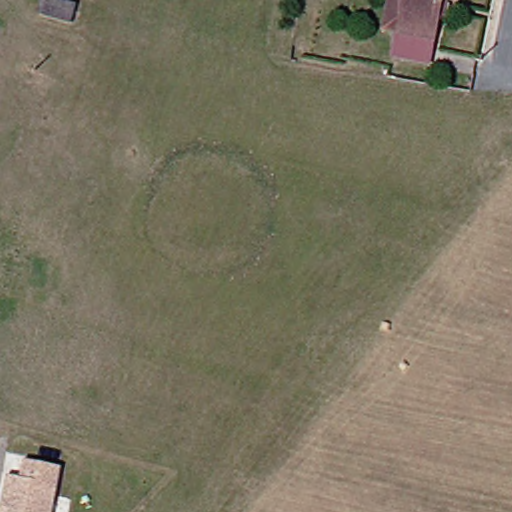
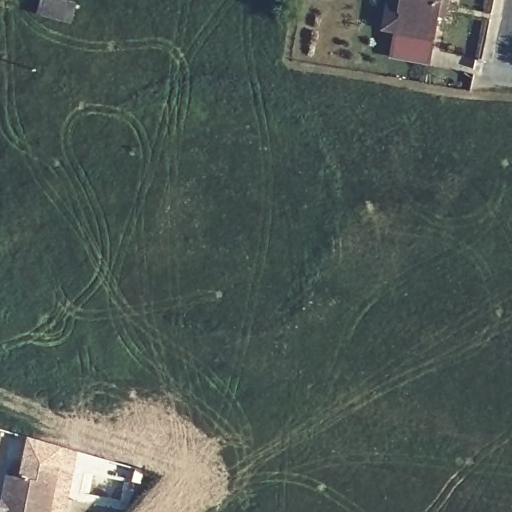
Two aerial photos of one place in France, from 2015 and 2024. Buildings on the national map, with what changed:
unchanged [(404,0),(449,0),(446,15),(440,14),(433,47),(430,62),(429,65),(393,58),(394,55),(397,40),(404,0)]
unchanged [(28,459),(64,466),(54,512),(3,512),(6,497),(11,475),(24,477),(28,459)]

